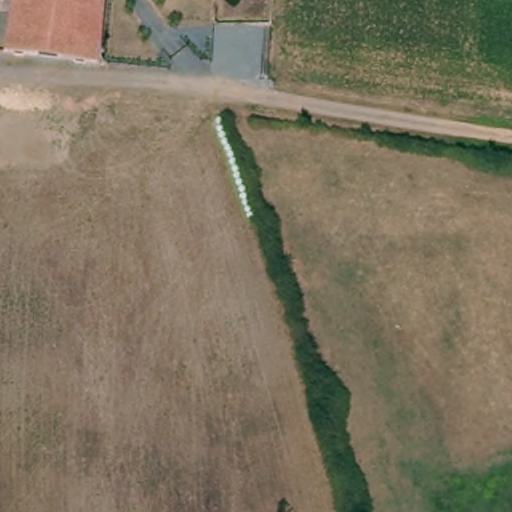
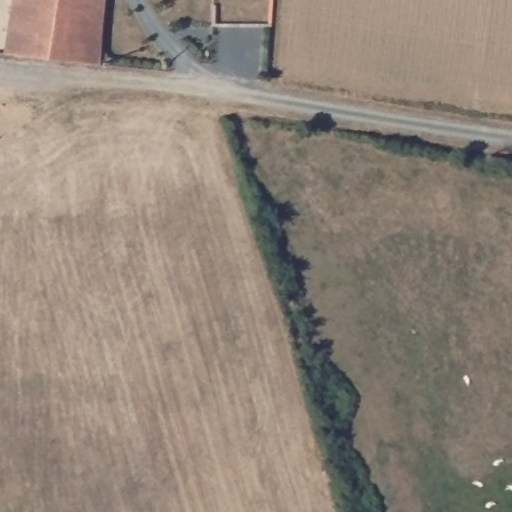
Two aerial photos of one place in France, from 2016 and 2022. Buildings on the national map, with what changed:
unchanged [(5,52),(13,0),(103,0),(96,64),(5,52)]

